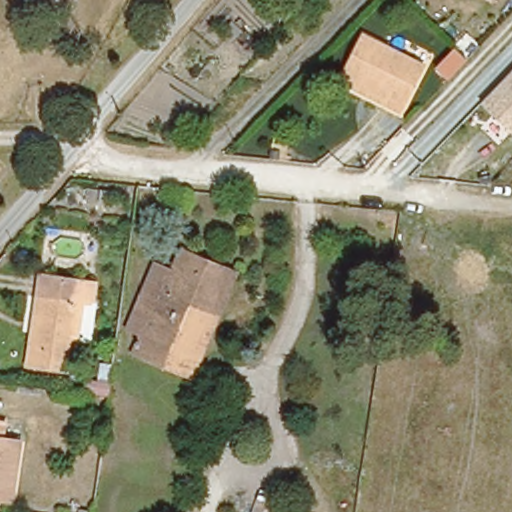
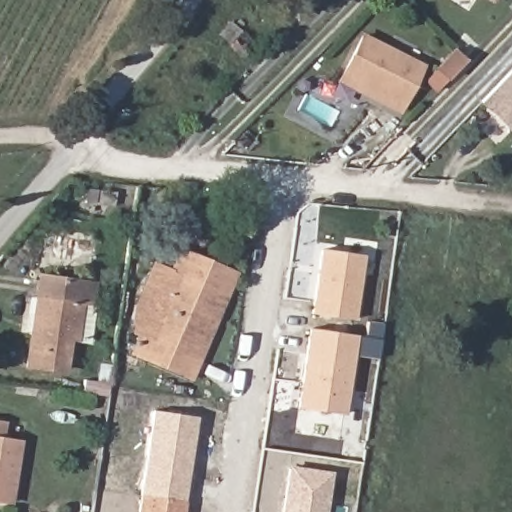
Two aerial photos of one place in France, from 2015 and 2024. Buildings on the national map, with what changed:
unchanged [(494,4),(486,0),(496,0),(494,4)]
unchanged [(342,81),(346,74),(364,36),(423,66),(404,104),(400,111),(342,81)]
unchanged [(512,132),(482,103),(512,72),(512,132)]
new [(364,255),(355,318),(311,312),(319,248),(364,255)]
unchanged [(155,336),(183,272),(191,251),(198,254),(164,335),(205,352),(239,271),(246,274),(204,373),(149,350),(155,336)]
unchanged [(239,271),(205,352),(164,335),(198,254),(239,271)]
unchanged [(155,336),(140,330),(167,265),(183,272),(155,336)]
unchanged [(88,305),(92,305),(87,340),(73,338),(66,337),(61,371),(22,366),(27,333),(35,275),(41,276),(91,283),(88,305)]
new [(310,328),(360,335),(348,413),(300,407),(310,328)]
unchanged [(86,379),(111,383),(109,396),(84,392),(86,379)]
new [(137,512),(153,410),(198,416),(184,512),(137,512)]
unchanged [(5,422),(3,438),(22,441),(13,502),(0,501),(0,422),(5,422)]
new [(281,512),(288,465),(333,471),(327,512),(281,512)]

